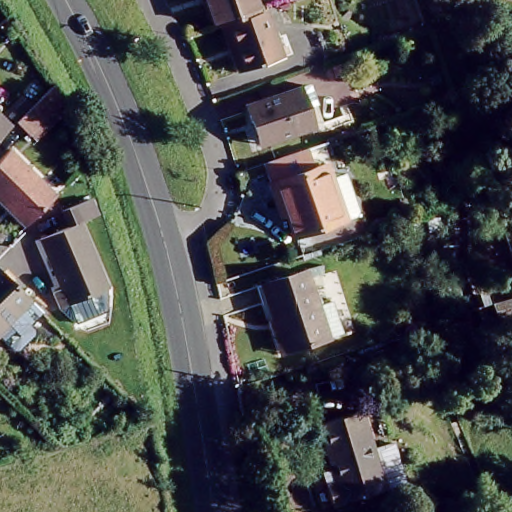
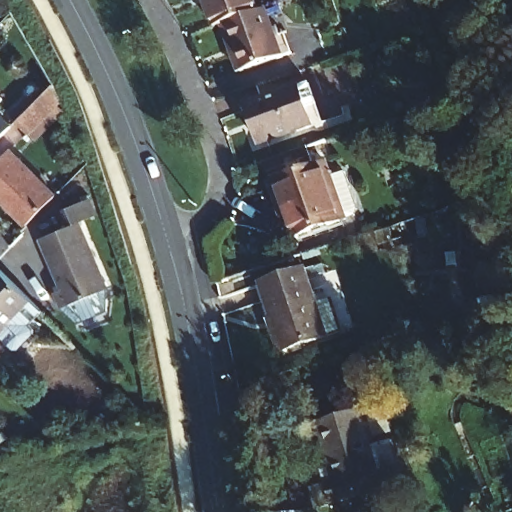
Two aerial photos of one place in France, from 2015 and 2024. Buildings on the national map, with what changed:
unchanged [(200,0),(251,0),(254,11),(223,22),(209,26),(200,0)]
unchanged [(279,58),(240,69),(223,22),(254,11),(263,9),(279,58)]
unchanged [(55,94),(23,128),(9,112),(44,75),(55,94)]
unchanged [(303,82),(314,119),(256,140),(243,103),(303,82)]
unchanged [(0,121),(0,109),(6,115),(0,121)]
unchanged [(0,159),(9,150),(52,193),(22,225),(0,202),(0,159)]
unchanged [(329,179),(336,177),(349,221),(344,223),(294,239),(283,204),(277,206),(271,185),(326,166),(329,179)]
unchanged [(88,195),(95,214),(79,220),(105,289),(58,306),(51,288),(61,286),(41,233),(52,228),(45,212),(88,195)]
unchanged [(299,264),(322,332),(280,349),(257,281),(299,264)]
unchanged [(1,322),(0,323),(0,267),(28,296),(18,306),(36,325),(20,342),(1,322)]
unchanged [(324,503),(314,470),(335,462),(321,419),(363,408),(376,453),(391,449),(401,481),(324,503)]

